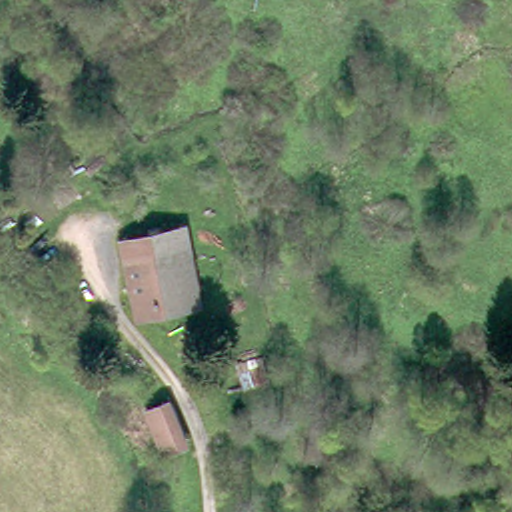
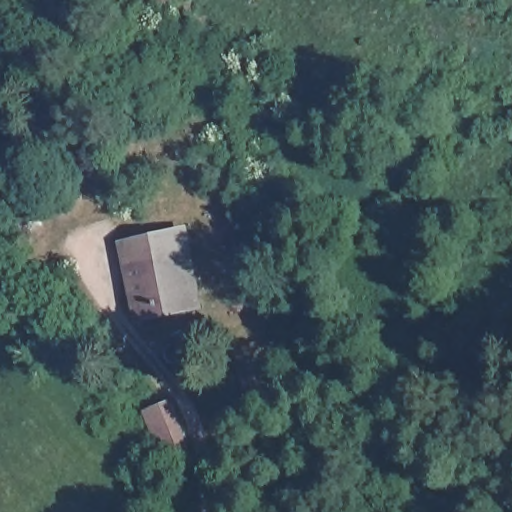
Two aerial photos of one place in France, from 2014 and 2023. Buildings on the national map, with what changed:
unchanged [(124,250),(106,253),(104,238),(131,234),(133,245),(181,237),(198,234),(203,262),(186,264),(195,313),(140,323),(124,250)]
unchanged [(177,448),(166,453),(148,411),(153,409),(172,402),(177,414),(179,419),(191,443),(186,444),(178,448),(177,448)]

